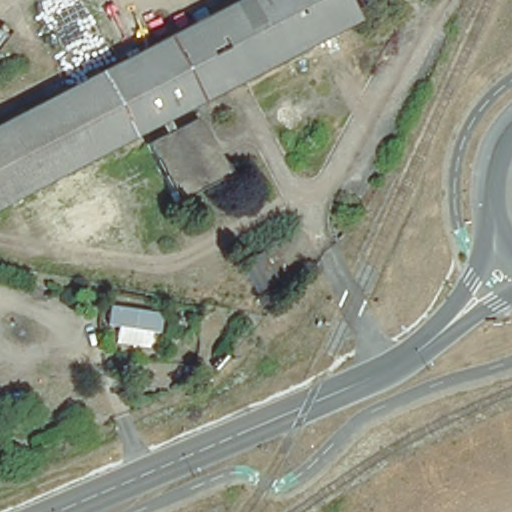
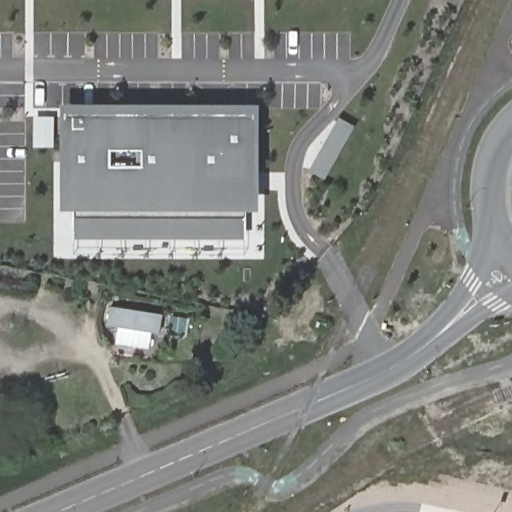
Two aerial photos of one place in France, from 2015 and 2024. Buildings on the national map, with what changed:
demolished [(0,205),(0,125),(241,0),(334,0),(348,27),(0,205)]
new [(60,211),(60,104),(258,104),(258,212),(244,212),(244,219),(244,239),(72,239),(72,218),(72,211),(60,211)]
new [(33,147),(34,116),(44,116),(54,116),(54,147),(43,147),(33,147)]
demolished [(226,175),(181,199),(153,146),(198,123),(226,175)]
demolished [(113,221),(57,248),(34,201),(90,174),(113,221)]
demolished [(260,254),(273,278),(258,287),(245,263),(260,254)]
new [(107,327),(110,307),(136,310),(162,314),(159,334),(151,333),(149,349),(116,344),(118,328),(107,327)]
new [(169,334),(172,317),(179,318),(186,319),(184,337),(177,335),(169,334)]

